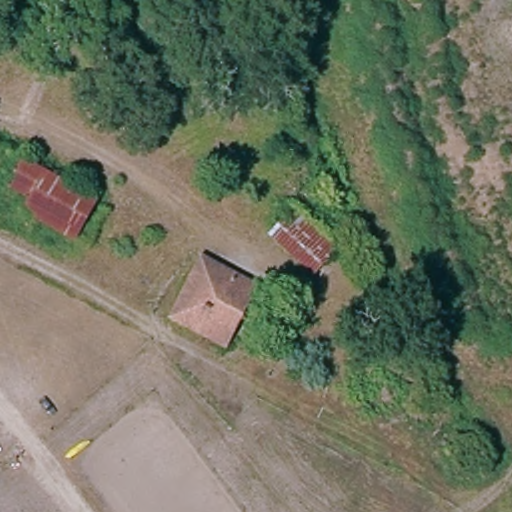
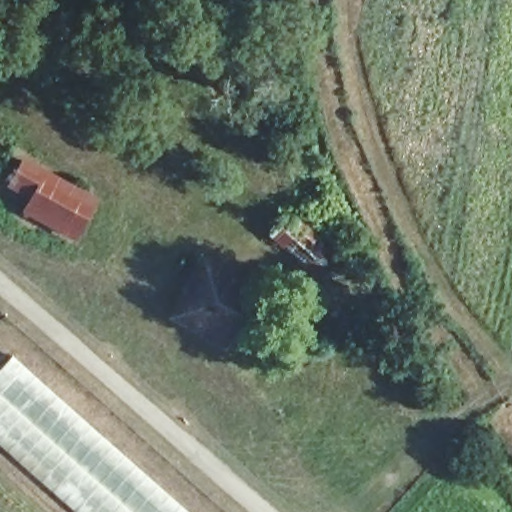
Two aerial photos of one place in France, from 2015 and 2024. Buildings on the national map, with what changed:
unchanged [(74,241),(23,215),(31,200),(10,187),(20,160),(95,201),(74,241)]
unchanged [(332,252),(314,271),(271,232),(288,210),(332,252)]
unchanged [(171,322),(197,255),(247,283),(221,345),(171,322)]
new [(0,446),(0,373),(13,358),(187,512),(74,512),(0,446)]

